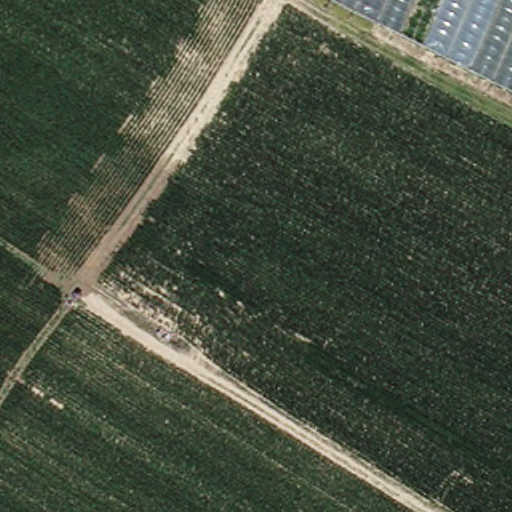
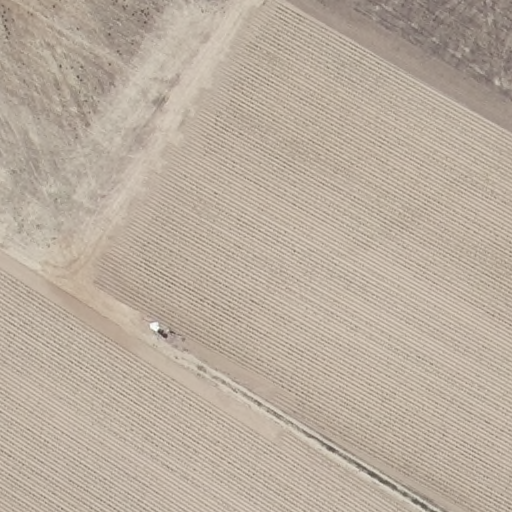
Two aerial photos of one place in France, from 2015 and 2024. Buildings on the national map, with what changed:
demolished [(512,0),(512,89),(343,0),(512,0)]

